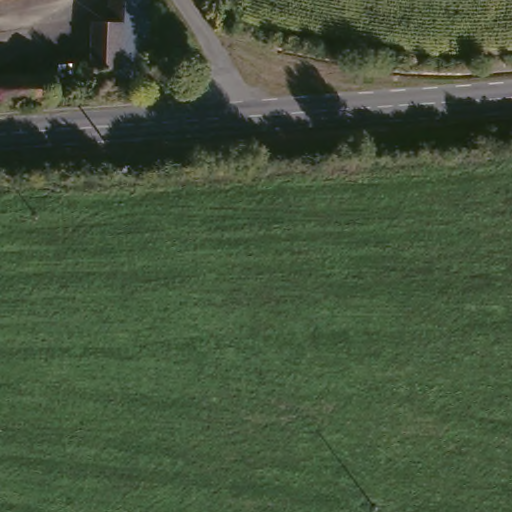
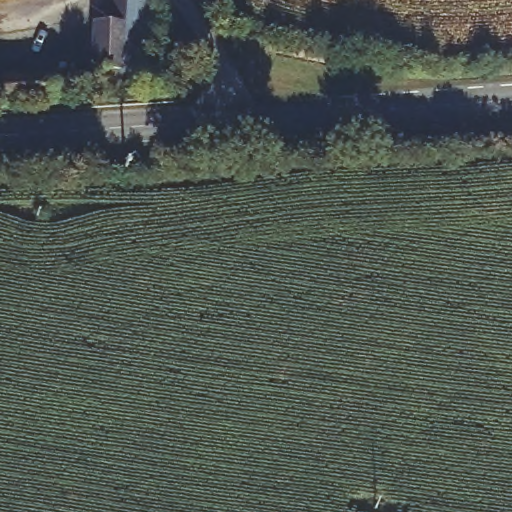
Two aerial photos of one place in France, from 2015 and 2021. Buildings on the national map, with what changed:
unchanged [(145,89),(93,86),(95,67),(91,65),(96,18),(108,19),(110,0),(152,0),(145,89)]
unchanged [(2,107),(2,93),(1,78),(38,76),(38,65),(77,63),(70,95),(53,96),(51,105),(2,107)]

